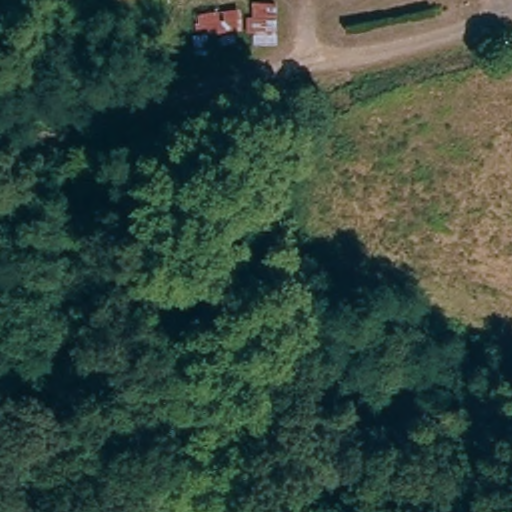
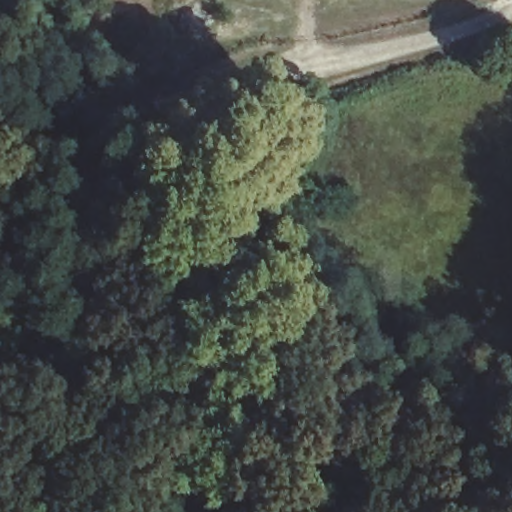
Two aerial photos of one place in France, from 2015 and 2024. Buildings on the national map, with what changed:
demolished [(251,6),(277,6),(280,49),(251,49),(251,6)]

